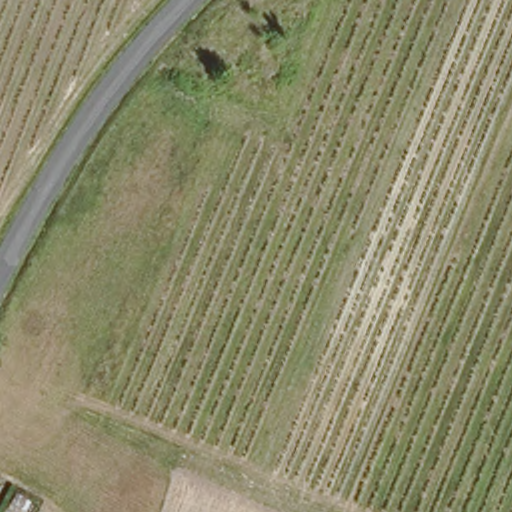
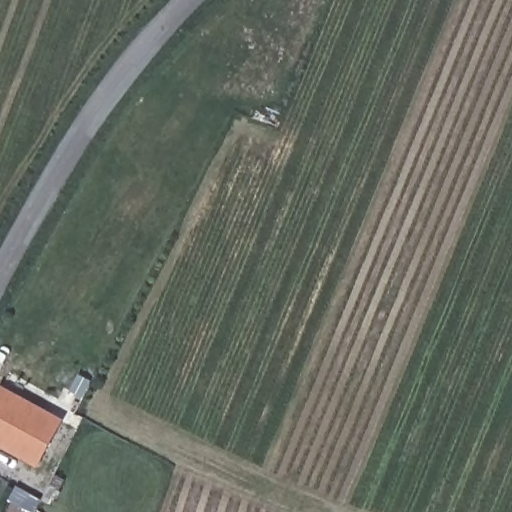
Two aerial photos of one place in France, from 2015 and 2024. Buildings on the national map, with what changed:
new [(29,406),(59,423),(35,466),(0,446),(0,390),(22,403),(29,406)]

